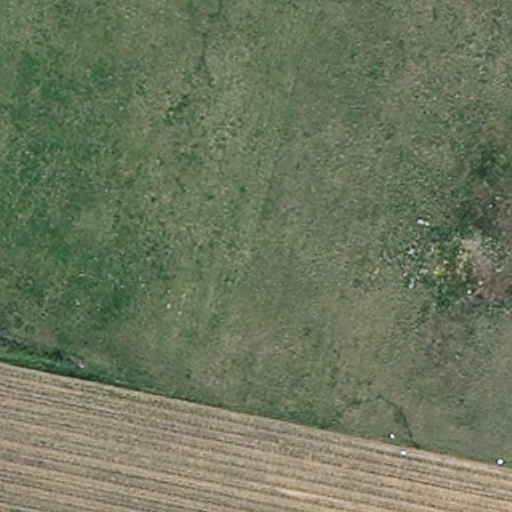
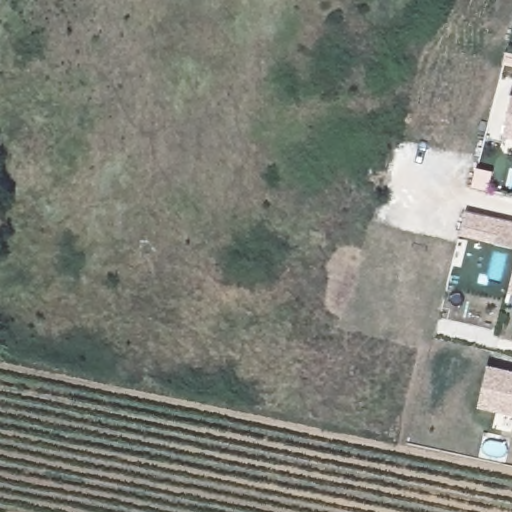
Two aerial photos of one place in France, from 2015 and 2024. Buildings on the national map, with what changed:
new [(512,100),(512,139),(503,137),(512,100)]
new [(460,238),(466,214),(512,223),(512,249),(494,244),(460,238)]
new [(512,295),(508,295),(512,281),(512,295)]
new [(488,367),(512,372),(512,416),(478,408),(488,367)]

